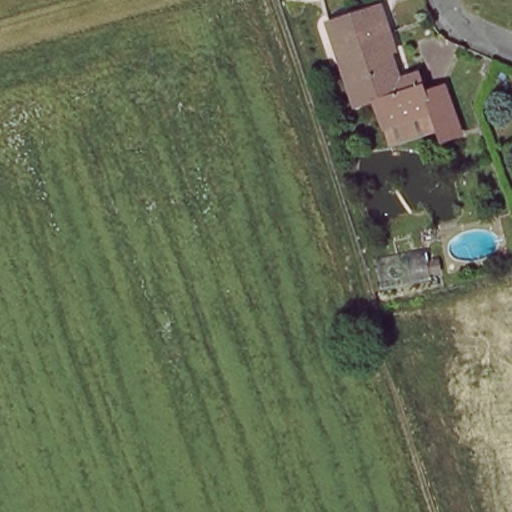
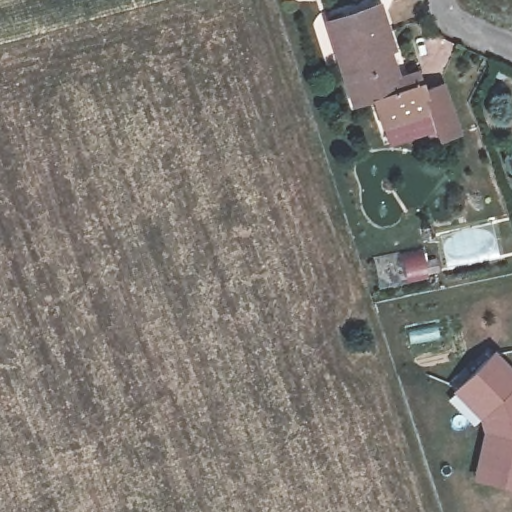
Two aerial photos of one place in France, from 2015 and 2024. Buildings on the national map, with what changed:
unchanged [(426,85),(430,92),(447,87),(462,136),(441,142),(432,112),(385,126),(378,97),(368,100),(344,15),(387,3),(401,53),(412,87),(426,85)]
new [(480,420),(454,392),(463,384),(492,357),(512,378),(512,390),(509,392),(512,396),(512,489),(485,483),(474,481),(484,434),(480,420)]

